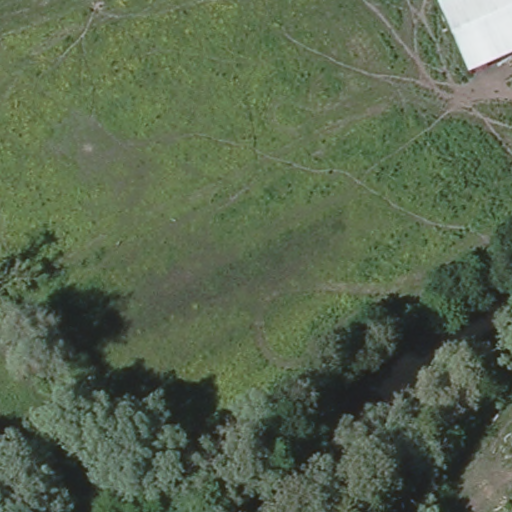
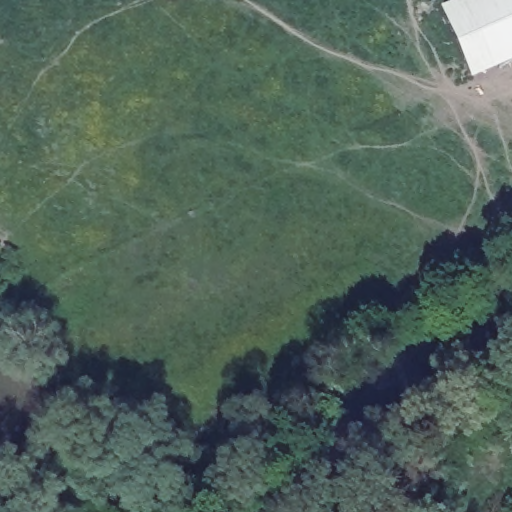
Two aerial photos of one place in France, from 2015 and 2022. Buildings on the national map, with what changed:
unchanged [(512,47),(466,67),(440,6),(455,0),(512,0),(512,47)]

